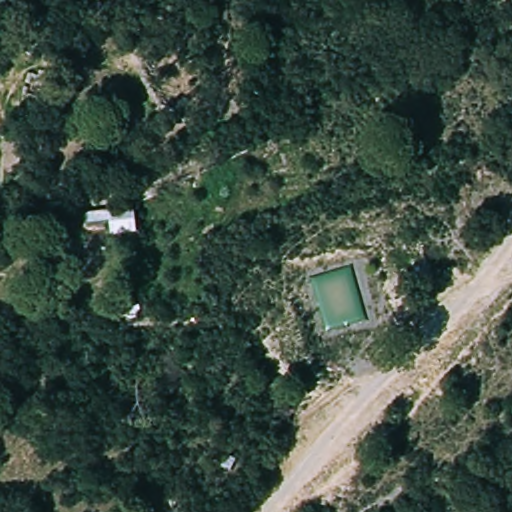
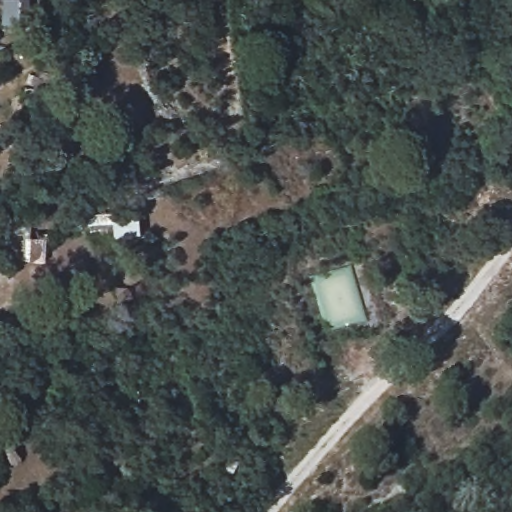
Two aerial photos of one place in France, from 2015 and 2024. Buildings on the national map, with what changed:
unchanged [(114,230),(79,231),(76,212),(111,209),(114,230)]

